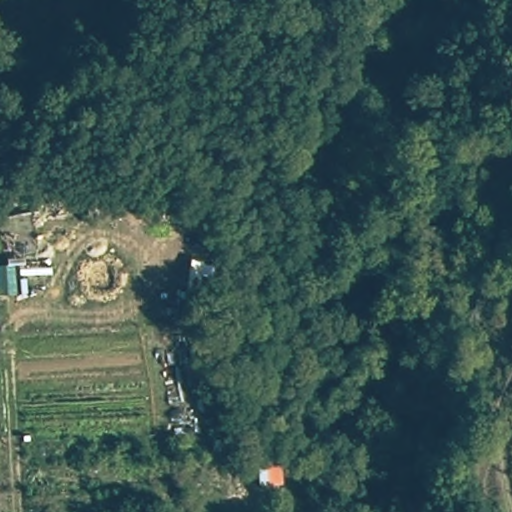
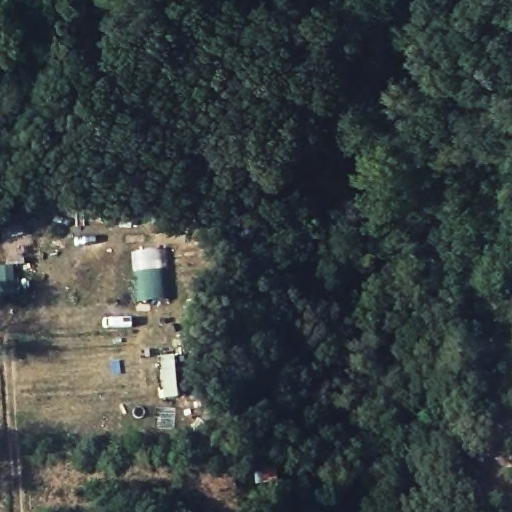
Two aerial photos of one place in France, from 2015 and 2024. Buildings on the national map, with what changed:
new [(172,300),(138,302),(133,253),(167,251),(172,300)]
unchanged [(253,488),(250,460),(275,457),(277,487),(253,488)]

